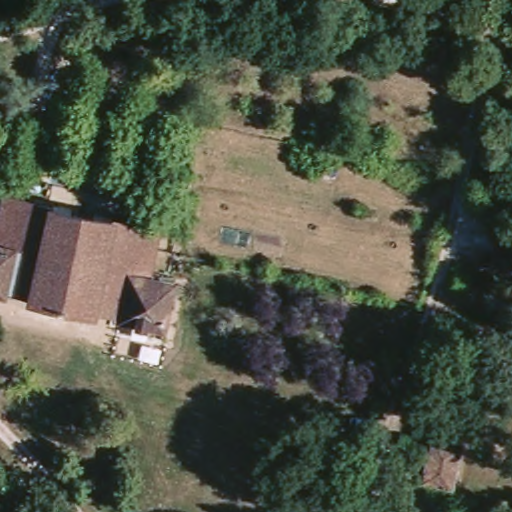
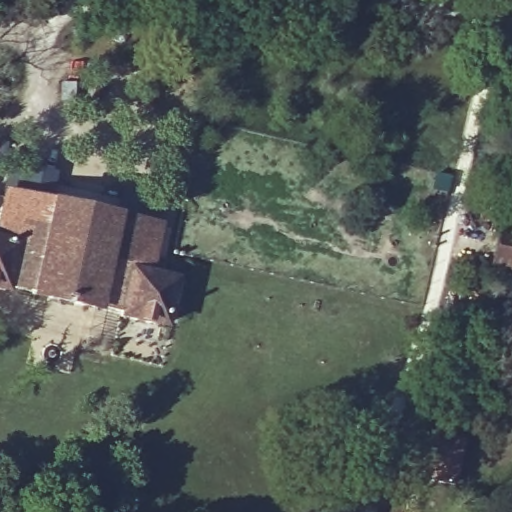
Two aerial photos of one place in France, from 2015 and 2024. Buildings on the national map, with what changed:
unchanged [(144,271),(167,275),(158,317),(155,324),(112,315),(111,305),(86,301),(86,305),(29,296),(24,293),(24,288),(0,283),(0,286),(0,191),(153,222),(144,271)]
unchanged [(490,263),(499,227),(512,230),(512,268),(490,263)]
unchanged [(420,475),(431,433),(459,440),(449,482),(420,475)]

